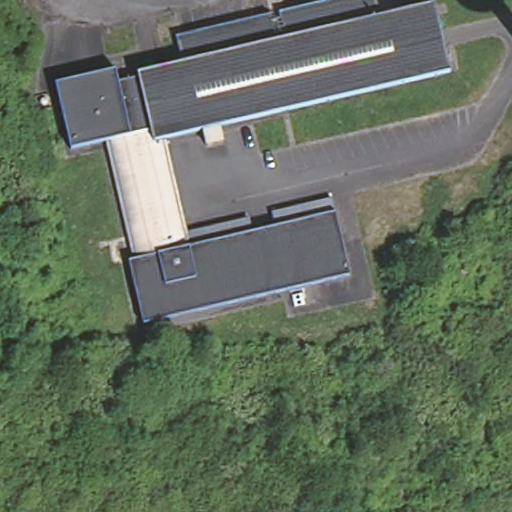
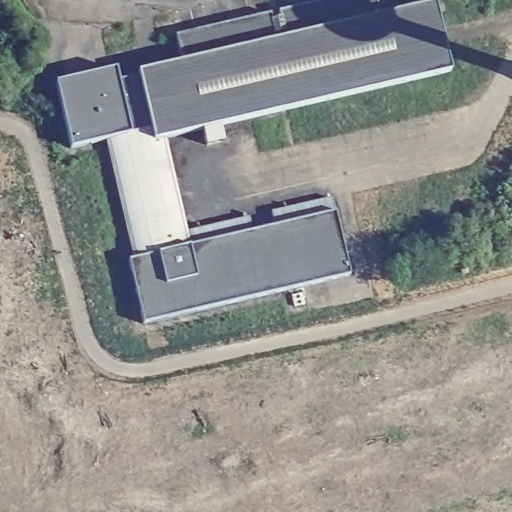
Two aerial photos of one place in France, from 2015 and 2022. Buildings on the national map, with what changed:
unchanged [(175,35),(344,0),(374,0),(379,19),(180,62),(175,35)]
unchanged [(139,71),(180,62),(379,19),(432,7),(447,74),(158,137),(153,138),(140,76),(139,71)]
unchanged [(248,236),(270,232),(267,217),(330,204),(334,219),(347,282),(140,327),(127,263),(135,261),(110,141),(70,150),(56,82),(116,70),(118,80),(140,76),(153,138),(158,137),(180,236),(245,222),(248,236)]

